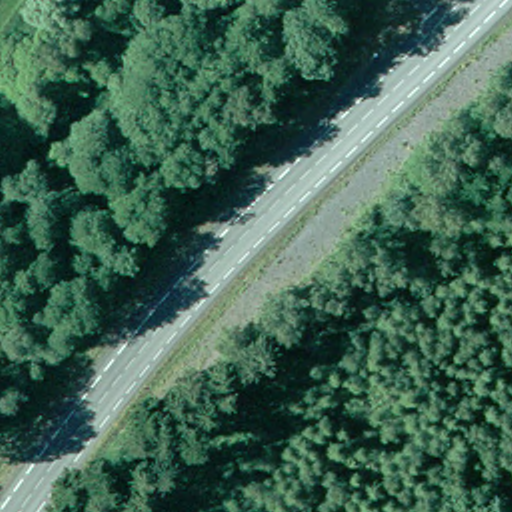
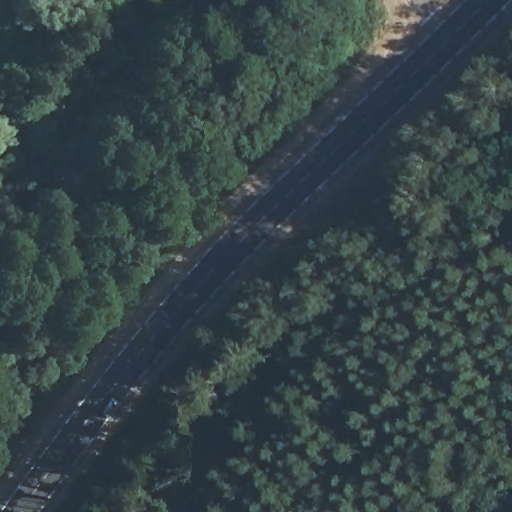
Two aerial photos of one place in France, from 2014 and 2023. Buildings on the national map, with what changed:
[]

